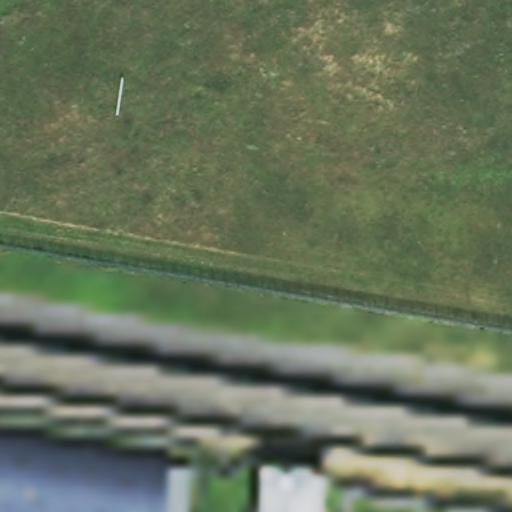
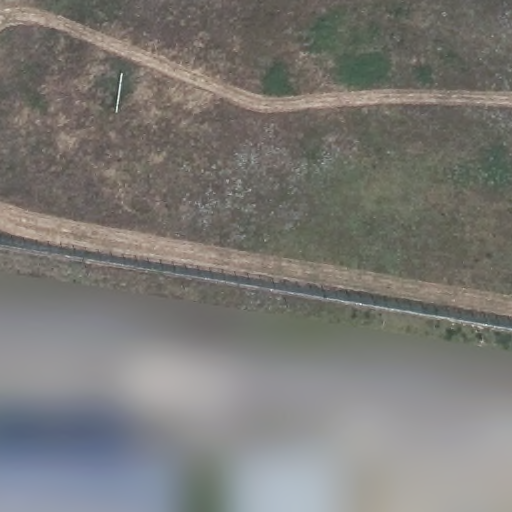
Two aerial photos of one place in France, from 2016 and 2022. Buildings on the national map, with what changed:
unchanged [(170,459),(197,464),(189,512),(0,512),(0,421),(171,451),(170,459)]
unchanged [(329,465),(321,512),(253,512),(263,453),(329,465)]

